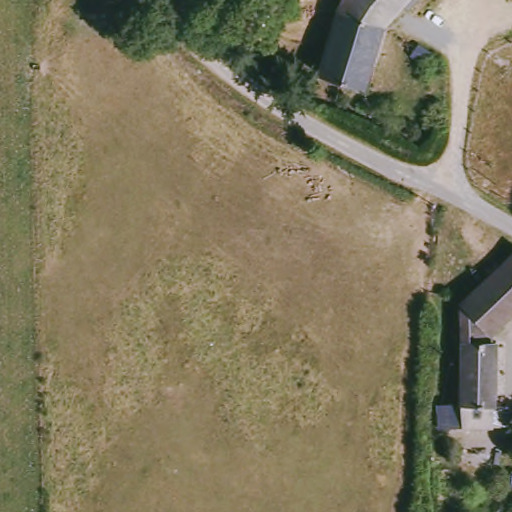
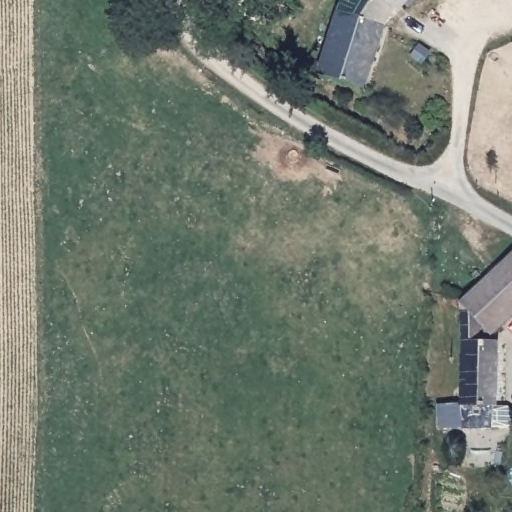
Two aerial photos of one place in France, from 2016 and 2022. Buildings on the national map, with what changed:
unchanged [(342,9),(346,0),(412,0),(390,24),(370,89),(323,74),(342,9)]
unchanged [(440,429),(440,404),(463,404),(466,301),(512,257),(512,317),(494,333),(495,342),(500,343),(499,405),(496,428),(467,432),(440,429)]

